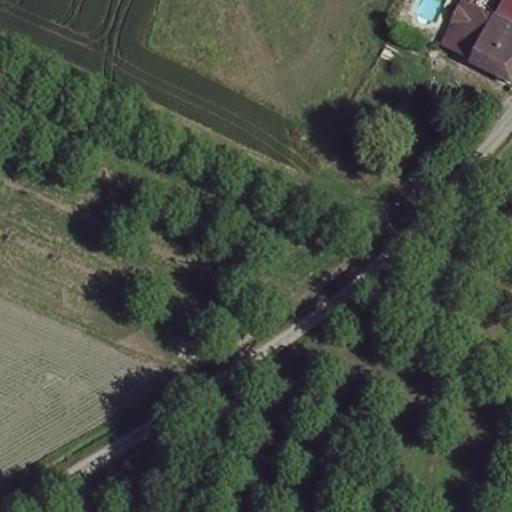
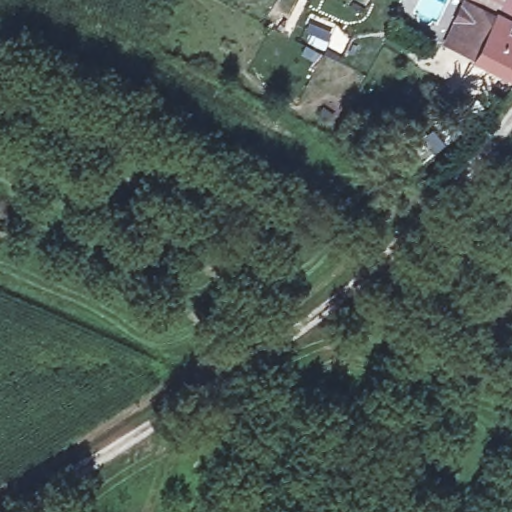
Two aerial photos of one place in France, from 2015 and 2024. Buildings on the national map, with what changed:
unchanged [(478,60),(482,52),(475,50),(453,42),(466,10),(492,19),(496,22),(506,0),(512,0),(512,73),(478,60)]

